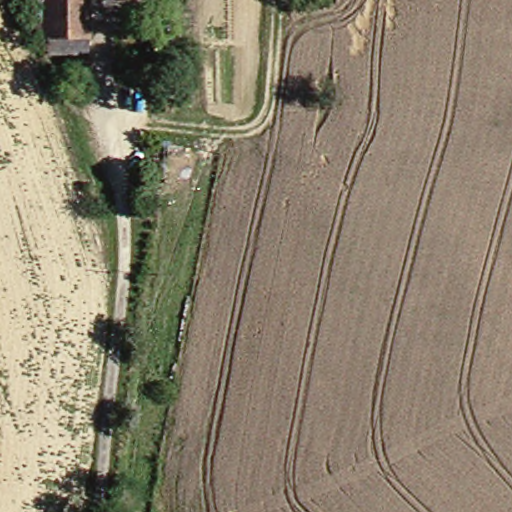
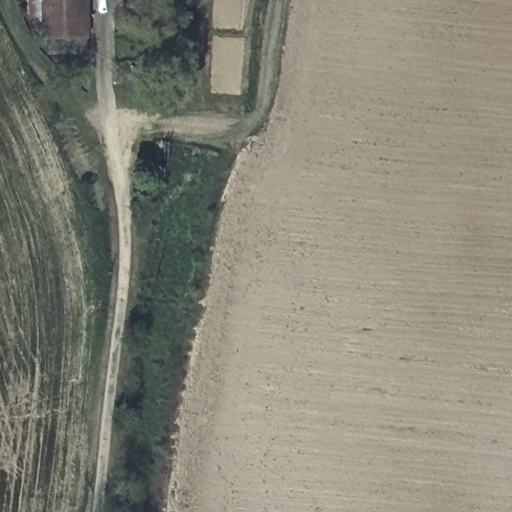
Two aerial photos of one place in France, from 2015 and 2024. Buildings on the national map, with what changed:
unchanged [(49,0),(92,0),(91,35),(91,54),(47,51),(50,31),(49,0)]

